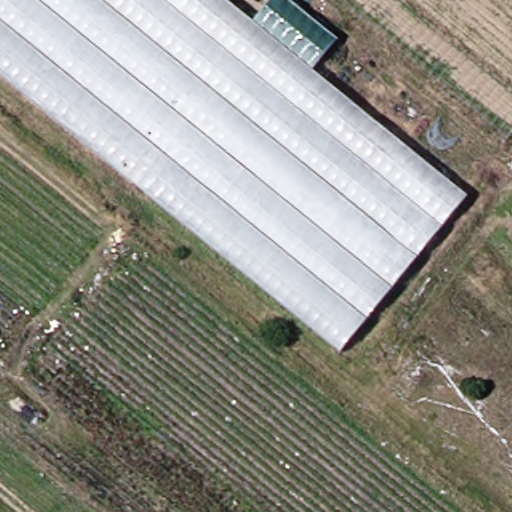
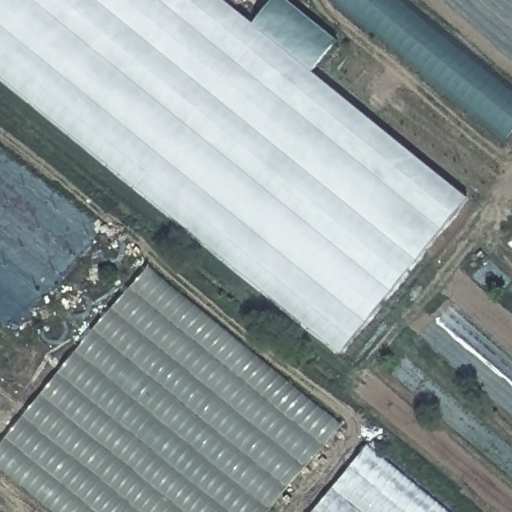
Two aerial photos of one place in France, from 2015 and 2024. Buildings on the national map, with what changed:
unchanged [(475,199),(348,355),(0,73),(0,0),(229,0),(260,25),(318,72),(475,199)]
unchanged [(260,25),(280,0),(292,0),(343,41),(318,72),(260,25)]
new [(328,0),(406,0),(512,89),(512,135),(505,144),(328,0)]
new [(58,512),(0,463),(0,450),(152,266),(346,426),(274,512),(58,512)]
demolished [(425,340),(451,305),(512,353),(512,408),(425,340)]
new [(311,512),(366,447),(445,512),(311,512)]

